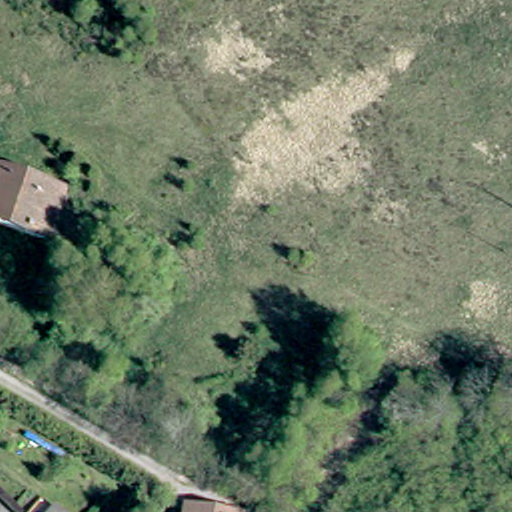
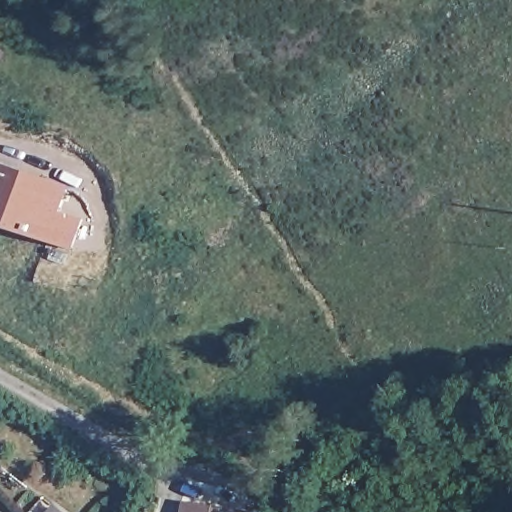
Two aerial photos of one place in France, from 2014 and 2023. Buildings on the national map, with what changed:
unchanged [(57,242),(55,245),(0,227),(0,174),(2,169),(2,170),(72,190),(65,217),(85,224),(77,249),(57,242)]
unchanged [(42,512),(39,512),(40,510),(42,512)]
unchanged [(215,512),(188,512),(189,510),(215,512)]

